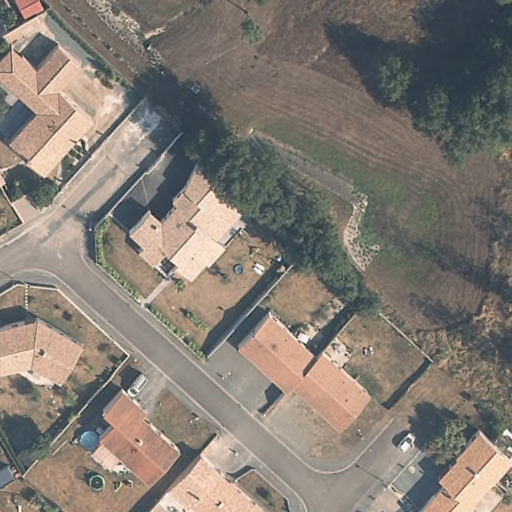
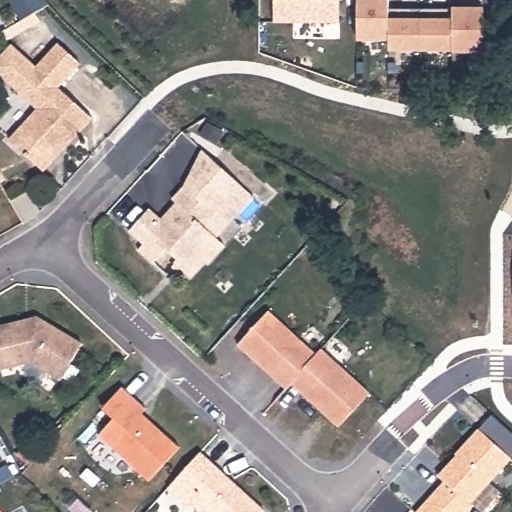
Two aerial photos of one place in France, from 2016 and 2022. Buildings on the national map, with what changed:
unchanged [(336,24),(271,23),(272,0),(337,0),(336,24)]
new [(357,0),(388,0),(388,10),(451,10),(450,7),(484,7),(484,52),(389,52),(389,41),(357,42),(357,0)]
unchanged [(85,69),(62,94),(94,122),(45,175),(12,144),(41,113),(5,82),(0,76),(0,65),(16,47),(27,59),(40,72),(64,49),(85,69)]
unchanged [(200,151),(253,199),(217,240),(224,246),(209,261),(198,251),(213,233),(206,227),(217,215),(184,187),(200,151)]
unchanged [(172,201),(184,187),(217,215),(206,227),(213,233),(198,251),(209,261),(195,277),(178,265),(181,261),(168,251),(156,265),(140,252),(146,247),(131,232),(147,215),(150,211),(163,222),(177,205),(172,201)]
unchanged [(288,392),(240,346),(272,312),(317,357),(324,350),(372,395),(342,427),(294,384),(288,392)]
unchanged [(0,367),(0,332),(39,322),(86,352),(63,387),(34,367),(2,375),(0,367)]
unchanged [(116,423),(105,414),(124,392),(148,414),(143,419),(181,452),(151,486),(100,441),(116,423)]
unchanged [(436,481),(475,432),(509,462),(470,507),(472,509),(470,512),(441,512),(429,502),(443,486),(436,481)]
unchanged [(16,477),(0,487),(0,486),(0,473),(10,467),(16,477)]
unchanged [(221,476),(261,512),(196,512),(193,509),(221,476)]

